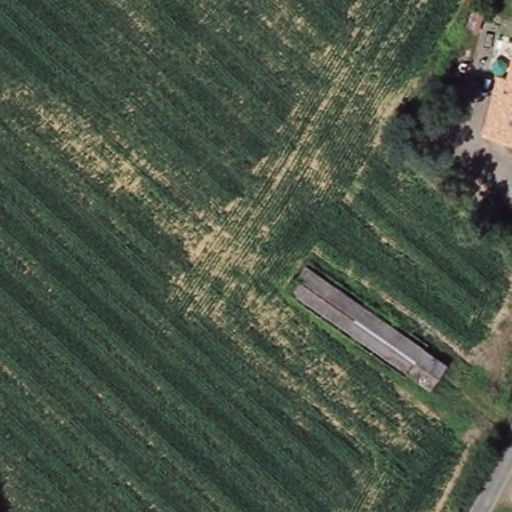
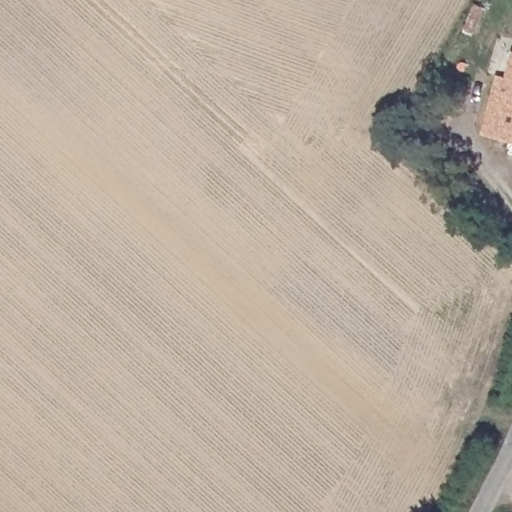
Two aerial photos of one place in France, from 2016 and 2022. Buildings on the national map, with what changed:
unchanged [(474,5),(487,10),(479,34),(465,30),(474,5)]
unchanged [(496,81),(507,84),(512,60),(512,150),(482,143),(496,81)]
demolished [(307,261),(379,311),(384,304),(393,310),(389,318),(429,346),(425,351),(444,364),(427,388),(406,373),(405,375),(284,294),(307,261)]

